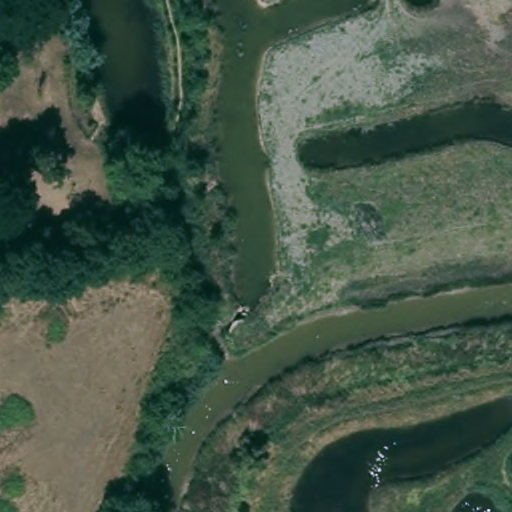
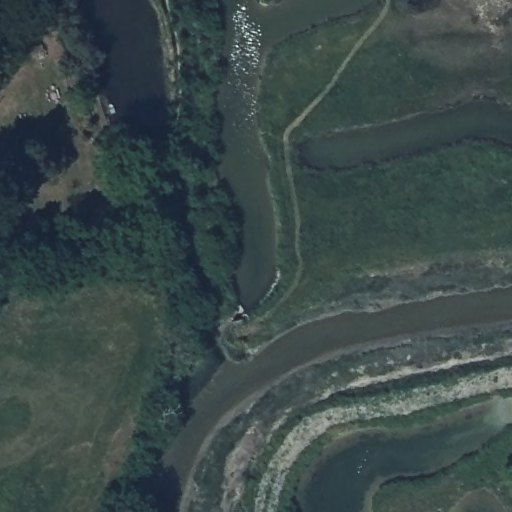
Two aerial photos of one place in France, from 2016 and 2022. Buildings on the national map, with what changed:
unchanged [(132,134),(143,133),(143,140),(144,145),(143,146),(133,147),(132,134)]

